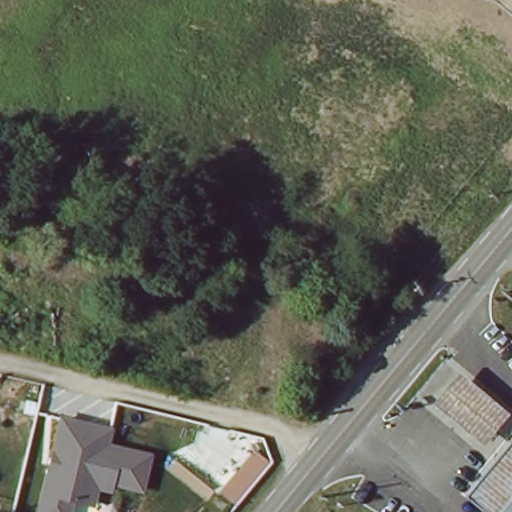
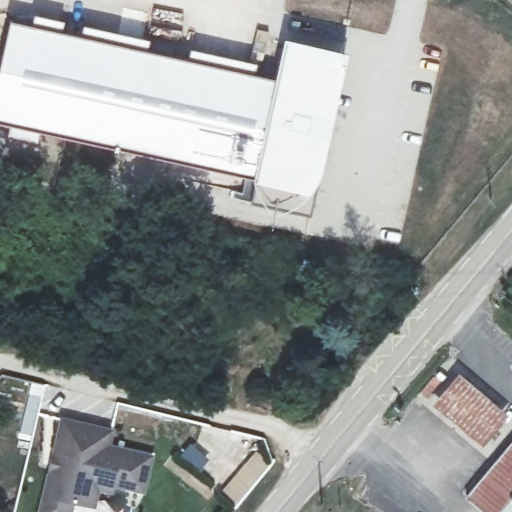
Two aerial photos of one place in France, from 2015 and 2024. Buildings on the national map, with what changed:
new [(41,18),(44,8),(72,16),(70,25),(90,29),(92,20),(159,35),(156,44),(197,52),(199,42),(267,58),(266,67),(286,71),(295,32),(358,44),(330,190),(264,179),(265,170),(0,114),(20,14),(41,18)]
unchanged [(217,266),(169,254),(175,233),(223,245),(217,266)]
unchanged [(510,412),(484,445),(434,405),(458,371),(510,412)]
unchanged [(53,462),(64,424),(112,437),(108,453),(155,466),(146,500),(112,490),(110,497),(96,494),(91,511),(72,505),(70,512),(41,512),(51,470),(53,462)]
unchanged [(512,448),(512,512),(489,512),(470,497),(512,448)]

